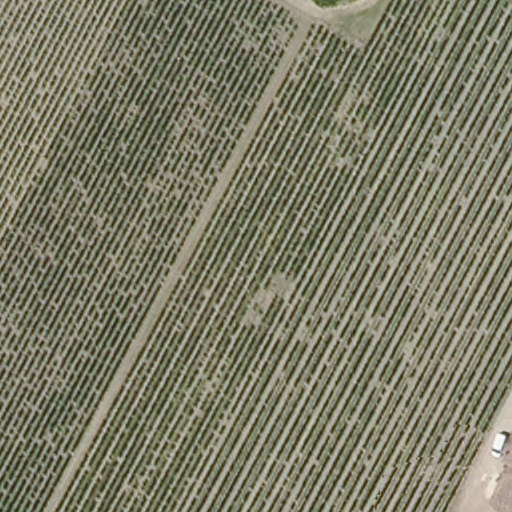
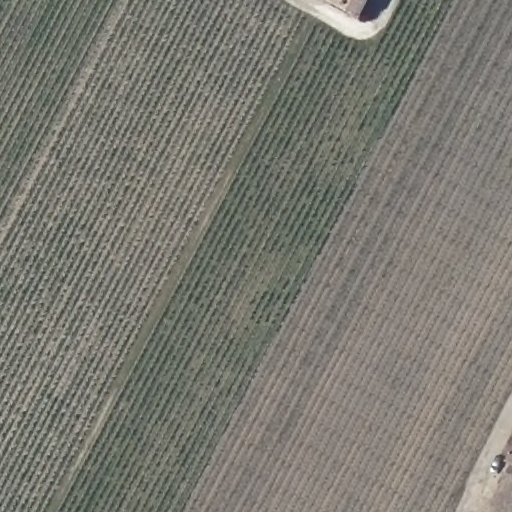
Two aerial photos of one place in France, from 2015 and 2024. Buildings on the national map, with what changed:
new [(363,19),(328,0),(374,0),(363,19)]
unchanged [(509,466),(511,463),(505,459),(512,446),(512,468),(509,466)]
unchanged [(505,512),(495,506),(512,473),(512,512),(505,512)]

